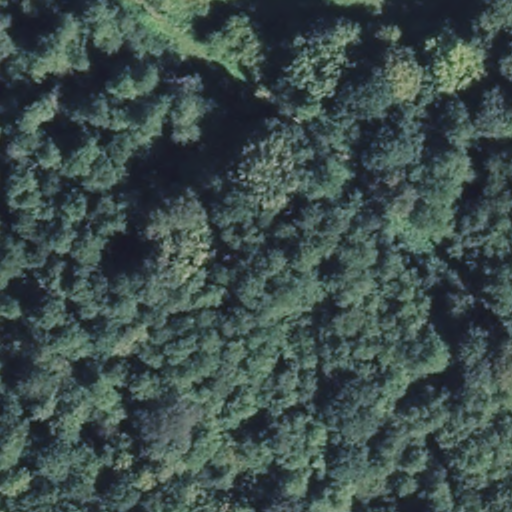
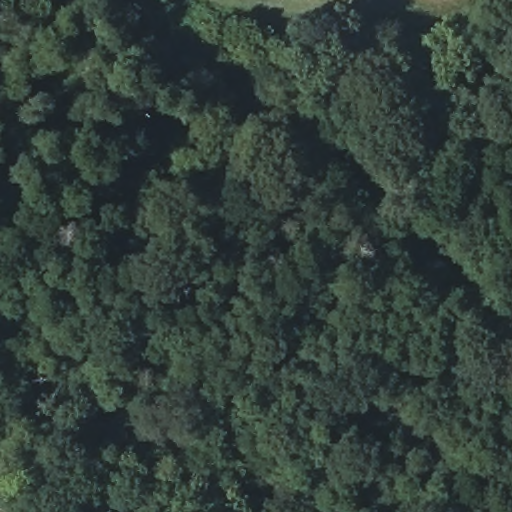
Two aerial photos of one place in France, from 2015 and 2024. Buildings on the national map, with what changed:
[]

